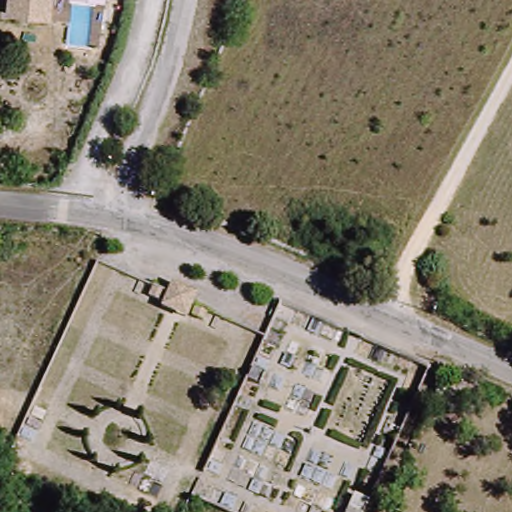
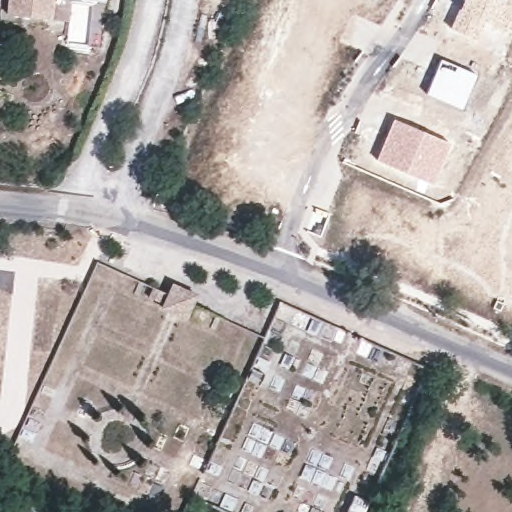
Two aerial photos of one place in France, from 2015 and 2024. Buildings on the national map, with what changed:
unchanged [(54,20),(10,19),(12,0),(55,0),(54,20)]
new [(512,0),(512,15),(505,31),(494,26),(484,21),(476,40),(450,27),(457,9),(461,0),(512,0)]
new [(440,57),(477,73),(461,109),(425,92),(440,57)]
new [(393,116),(450,142),(431,184),(375,159),(393,116)]
new [(175,289),(195,297),(185,320),(165,311),(175,289)]

